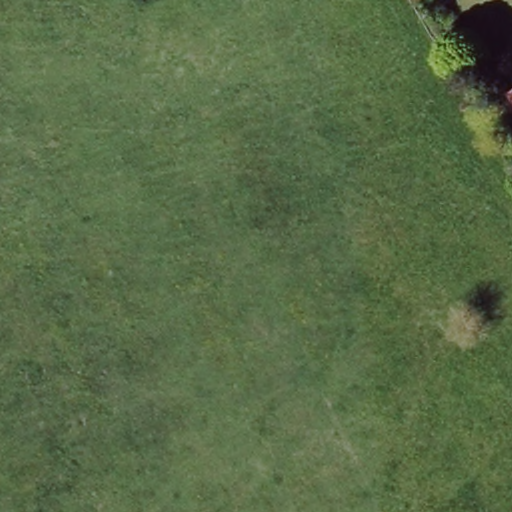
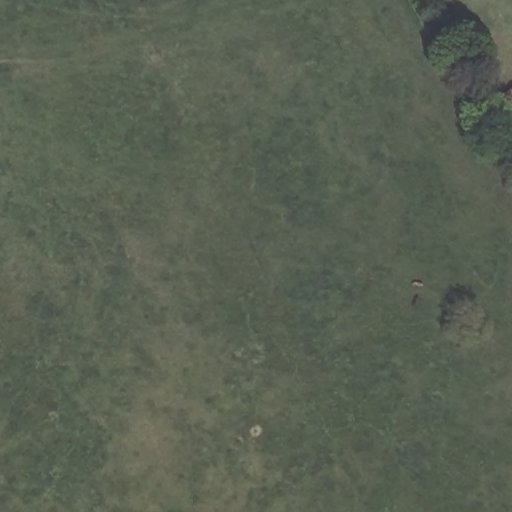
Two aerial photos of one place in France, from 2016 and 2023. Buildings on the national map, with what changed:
unchanged [(512,158),(512,182),(504,161),(512,158)]

